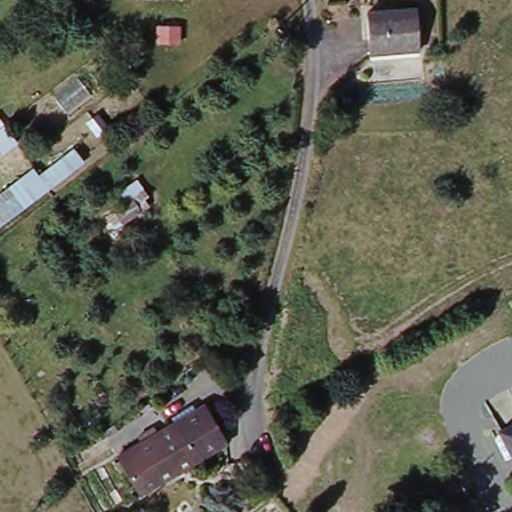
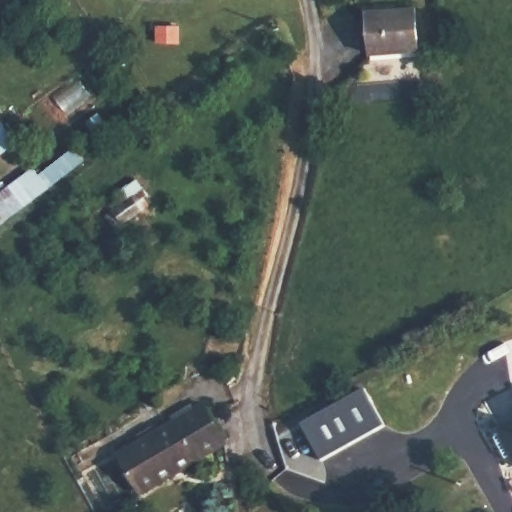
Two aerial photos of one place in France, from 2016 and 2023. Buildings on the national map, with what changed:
unchanged [(422,52),(374,54),(373,40),(372,10),(421,10),(421,29),(422,52)]
unchanged [(4,148),(0,142),(0,113),(19,140),(4,148)]
unchanged [(45,195),(0,230),(0,196),(28,174),(45,195)]
unchanged [(144,190),(153,206),(120,228),(109,213),(144,190)]
new [(360,391),(380,426),(325,463),(304,428),(360,391)]
unchanged [(145,500),(120,463),(144,447),(145,447),(139,439),(152,430),(157,438),(205,408),(227,444),(145,500)]
unchanged [(511,460),(500,439),(506,435),(505,432),(512,428),(512,460),(511,460)]

